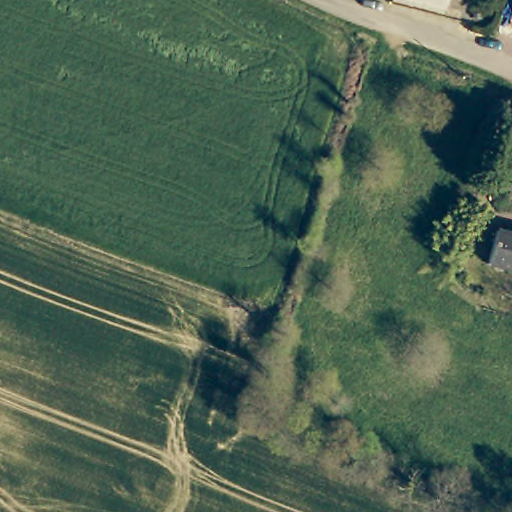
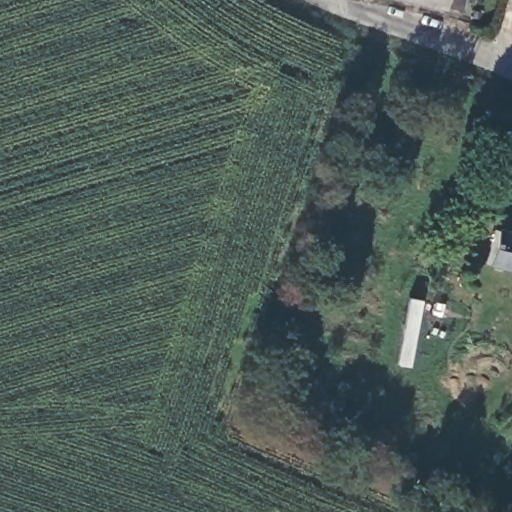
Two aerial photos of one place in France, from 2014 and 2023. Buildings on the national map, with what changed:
unchanged [(408,0),(446,0),(444,9),(408,0)]
unchanged [(501,229),(512,232),(512,270),(492,265),(501,229)]

